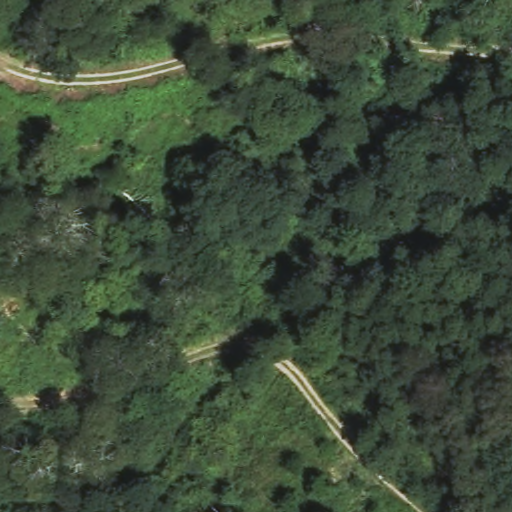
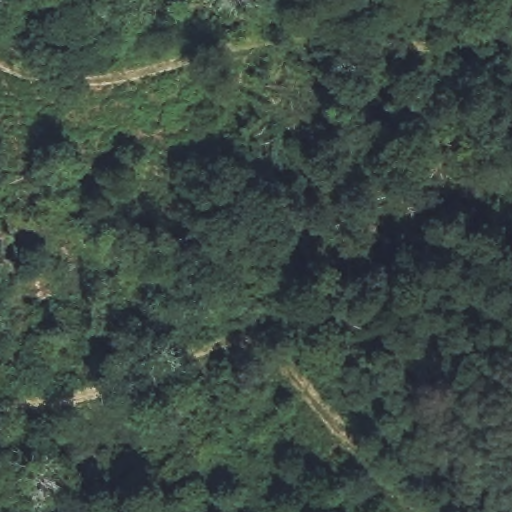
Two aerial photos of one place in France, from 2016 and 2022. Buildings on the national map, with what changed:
[]

